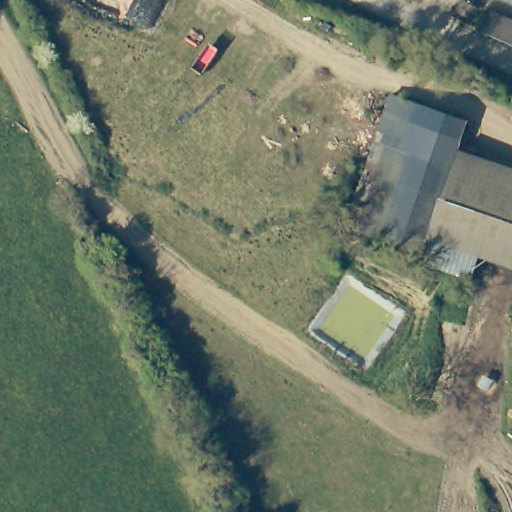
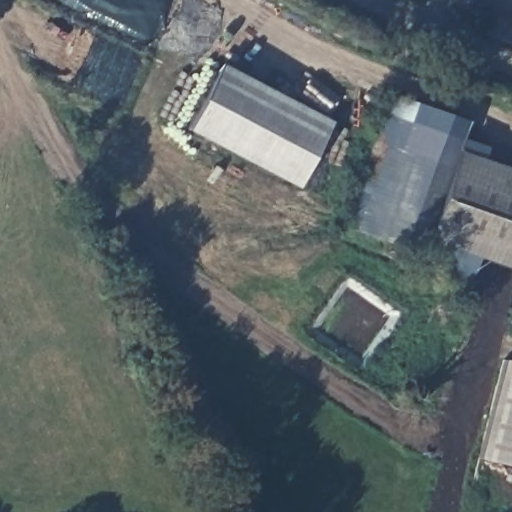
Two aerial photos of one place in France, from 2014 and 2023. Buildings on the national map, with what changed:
unchanged [(512,17),(512,40),(486,28),(492,9),(512,17)]
new [(299,189),(188,131),(223,65),(334,122),(299,189)]
unchanged [(465,135),(456,163),(431,239),(422,268),(343,243),(389,110),(465,135)]
unchanged [(512,265),(431,239),(456,163),(512,181),(512,265)]
new [(512,362),(512,467),(478,459),(503,360),(512,362)]

